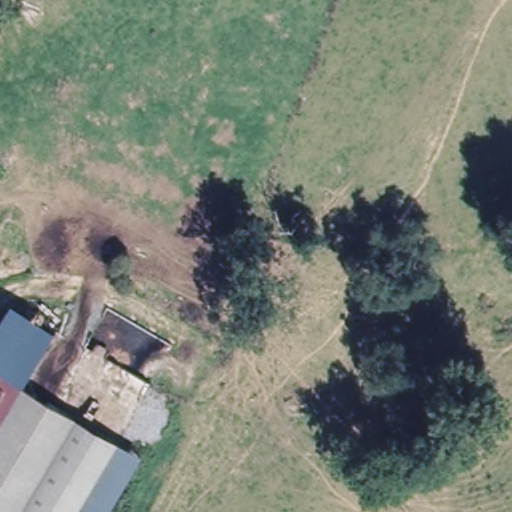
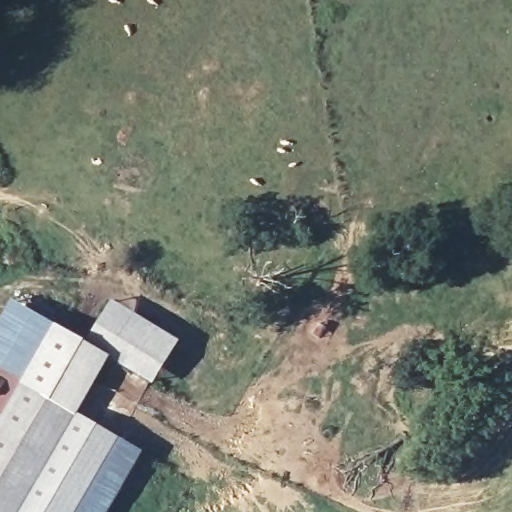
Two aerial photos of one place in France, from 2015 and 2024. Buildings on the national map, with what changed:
unchanged [(12,301),(55,330),(25,379),(0,366),(0,322),(12,301)]
new [(25,379),(55,330),(86,345),(112,301),(179,342),(153,385),(110,359),(80,414),(26,382),(0,426),(0,366),(25,379)]
demolished [(25,379),(0,420),(0,365),(25,379)]
unchanged [(26,382),(122,440),(80,512),(0,512),(0,426),(26,382)]
unchanged [(144,452),(108,512),(80,512),(122,440),(144,452)]

